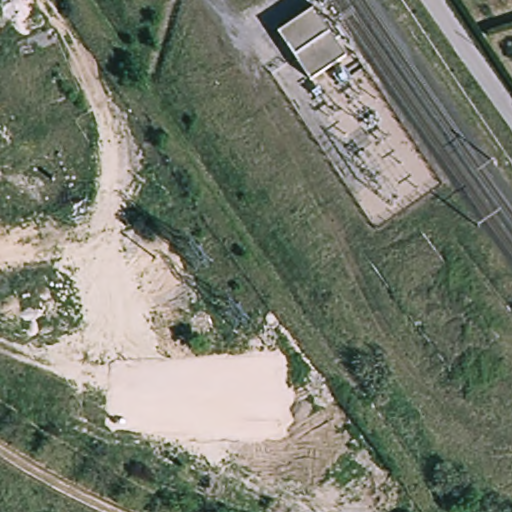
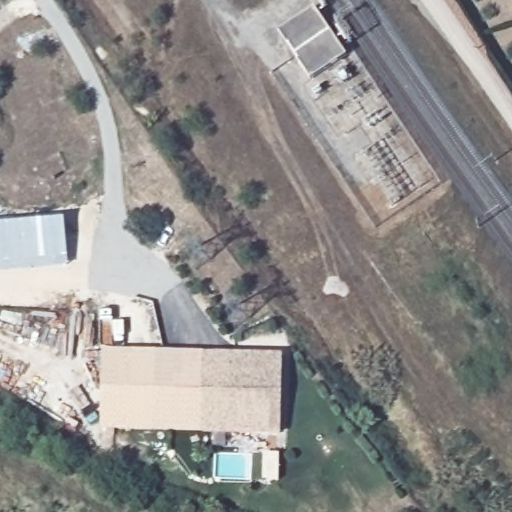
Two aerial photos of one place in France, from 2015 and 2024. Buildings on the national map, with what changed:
unchanged [(340,52),(306,77),(273,30),(309,6),(340,52)]
unchanged [(346,75),(337,83),(330,74),(339,66),(346,75)]
new [(0,273),(0,225),(65,220),(68,266),(0,273)]
new [(202,433),(100,431),(102,350),(203,353),(202,433)]
new [(280,436),(202,433),(203,353),(282,355),(280,436)]

